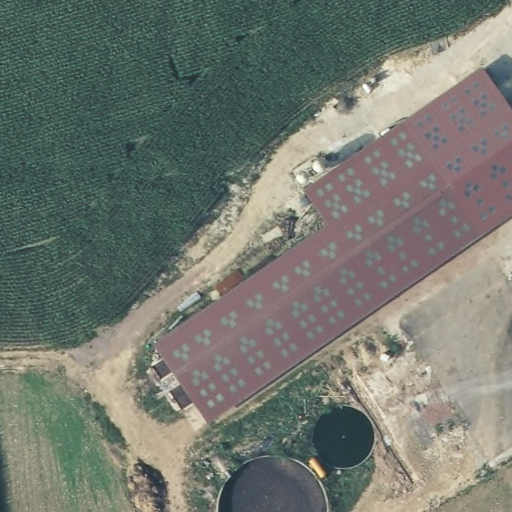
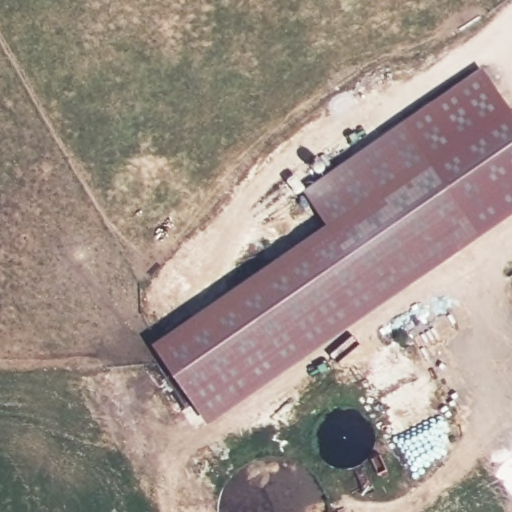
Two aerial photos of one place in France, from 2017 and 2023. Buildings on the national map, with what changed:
unchanged [(406,122),(483,69),(512,114),(512,212),(482,234),(406,122)]
unchanged [(206,424),(151,346),(324,225),(303,190),(406,122),(482,234),(206,424)]

